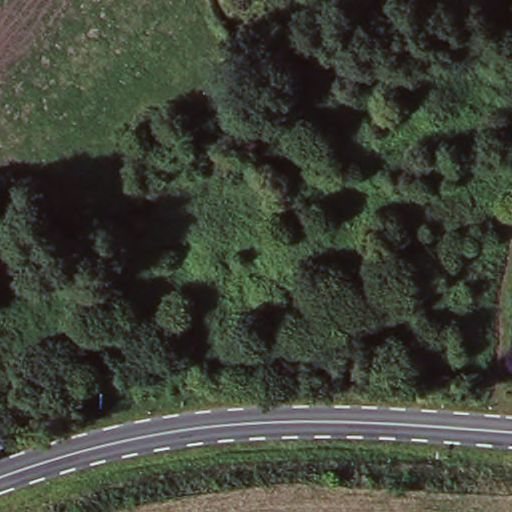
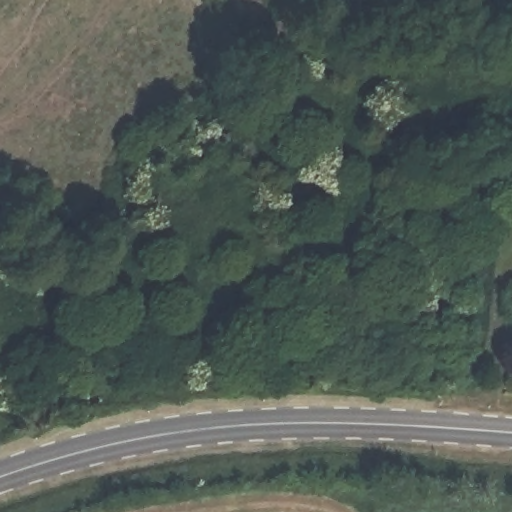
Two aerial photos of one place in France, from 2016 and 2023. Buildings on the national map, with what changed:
[]

